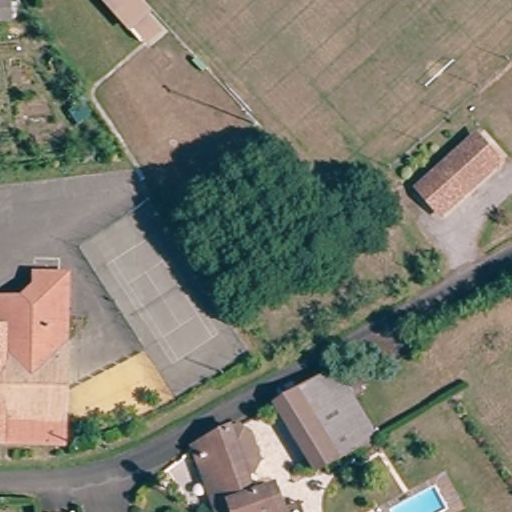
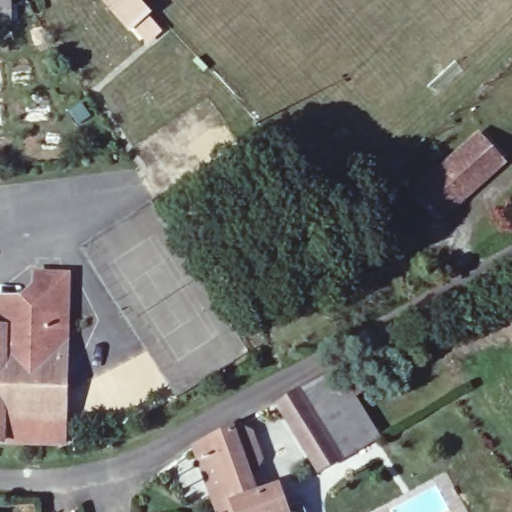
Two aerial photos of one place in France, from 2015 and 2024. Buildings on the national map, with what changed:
unchanged [(0,0),(14,0),(14,21),(0,21),(0,0)]
unchanged [(130,25),(127,28),(102,0),(129,0),(142,15),(137,19),(150,32),(142,40),(130,25)]
unchanged [(433,219),(410,192),(468,142),(490,171),(433,219)]
unchanged [(28,272),(65,272),(62,435),(0,434),(0,294),(28,292),(28,272)]
unchanged [(382,437),(347,457),(306,386),(340,363),(382,437)]
unchanged [(347,457),(324,469),(285,397),(306,386),(347,457)]
unchanged [(215,505),(191,448),(229,424),(229,426),(237,422),(247,428),(258,455),(250,457),(254,467),(247,470),(256,493),(269,487),(278,505),(295,496),(304,512),(233,512),(227,501),(215,505)]

